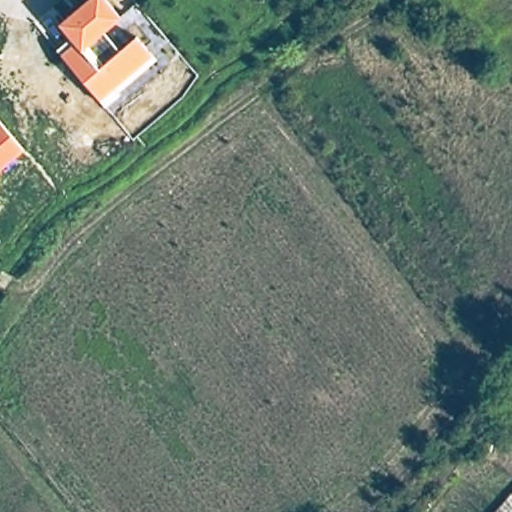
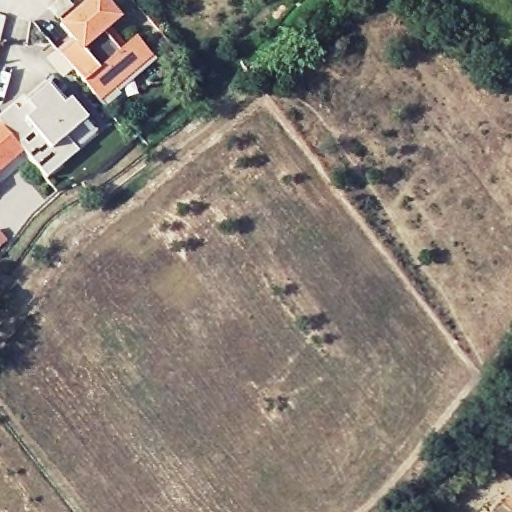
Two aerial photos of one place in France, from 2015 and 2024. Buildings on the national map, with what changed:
unchanged [(58,52),(56,51),(71,38),(60,25),(89,0),(104,0),(120,19),(100,35),(116,54),(136,37),(151,56),(113,89),(109,84),(95,96),(72,69),(63,77),(48,60),(58,52)]
new [(66,0),(71,6),(58,18),(49,8),(59,0),(66,0)]
new [(26,119),(34,112),(23,100),(53,75),(72,99),(78,93),(95,113),(74,131),(86,145),(63,165),(46,179),(23,151),(0,170),(0,117),(14,105),(26,119)]
demolished [(512,489),(512,512),(492,512),(512,489)]
new [(512,493),(512,512),(495,512),(512,493)]

